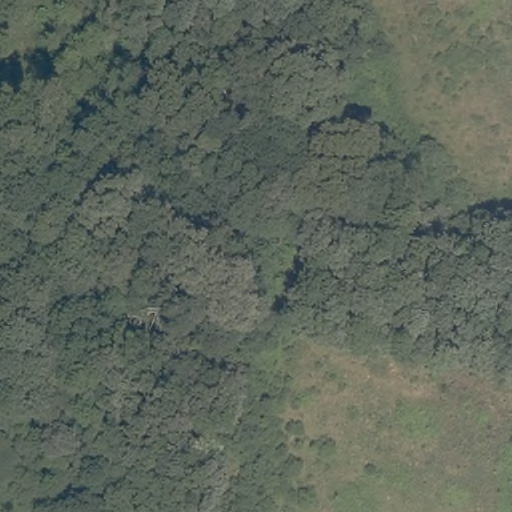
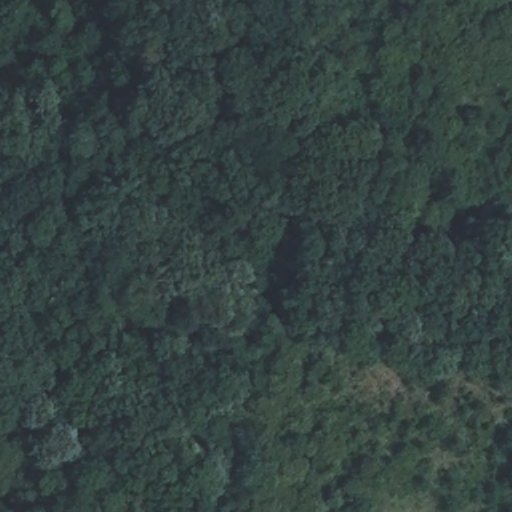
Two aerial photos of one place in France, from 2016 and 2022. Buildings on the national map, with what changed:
[]

